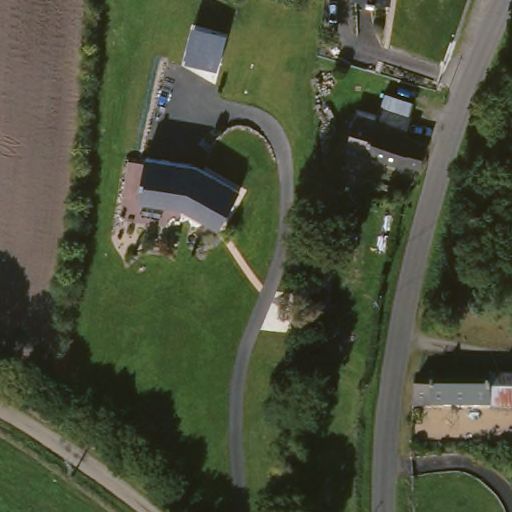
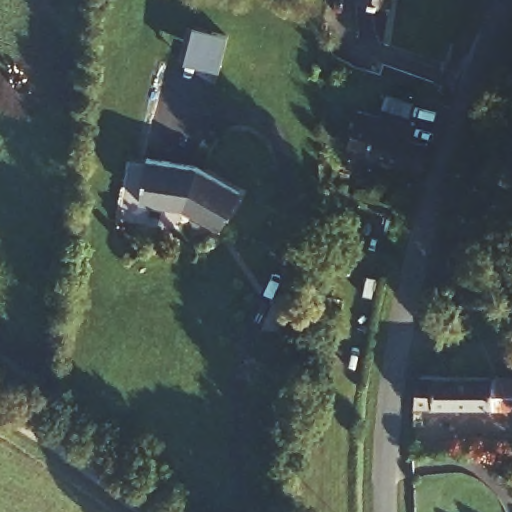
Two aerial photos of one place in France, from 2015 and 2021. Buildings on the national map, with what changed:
unchanged [(219,67),(184,62),(192,25),(229,32),(219,67)]
unchanged [(426,162),(349,150),(354,122),(374,125),(378,103),(409,109),(406,130),(411,131),(409,136),(431,140),(426,162)]
unchanged [(151,157),(202,165),(244,189),(222,224),(189,202),(144,194),(151,157)]
unchanged [(343,234),(341,257),(324,255),(325,240),(326,231),(343,234)]
unchanged [(493,379),(491,410),(415,407),(418,387),(419,376),(493,379)]
unchanged [(512,380),(512,411),(491,410),(493,379),(512,380)]

